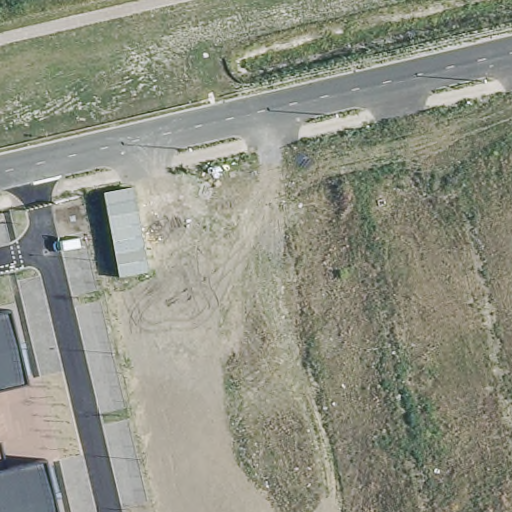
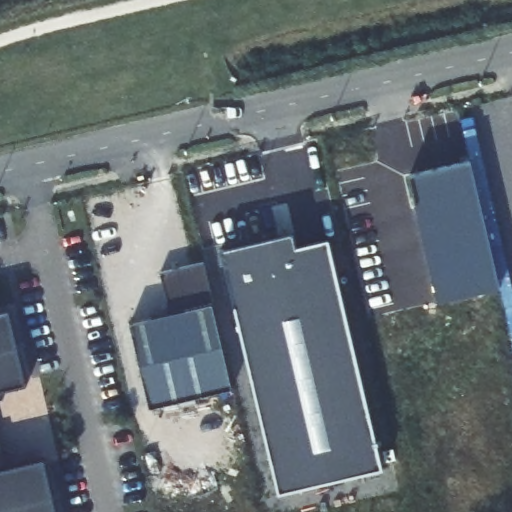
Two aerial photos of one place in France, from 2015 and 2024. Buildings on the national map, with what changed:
new [(499,287),(439,300),(412,175),(471,162),(499,287)]
new [(383,468),(279,492),(222,248),(295,232),(297,247),(331,239),(383,468)]
new [(212,306),(172,315),(161,271),(205,262),(212,306)]
new [(231,387),(150,406),(131,325),(212,306),(221,347),(231,387)]
unchanged [(8,311),(25,382),(0,389),(0,313),(8,311)]
unchanged [(8,467),(47,457),(57,512),(0,512),(0,446),(8,467)]

